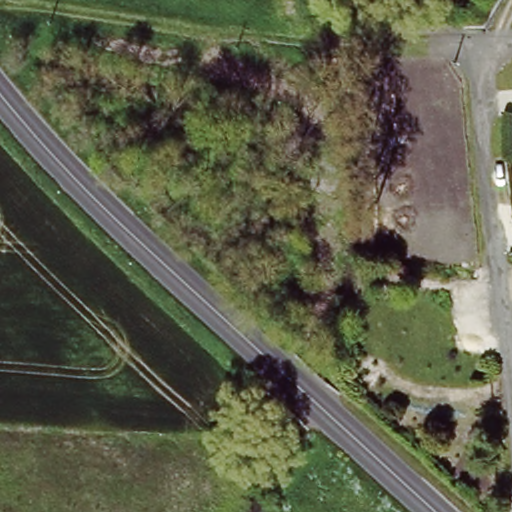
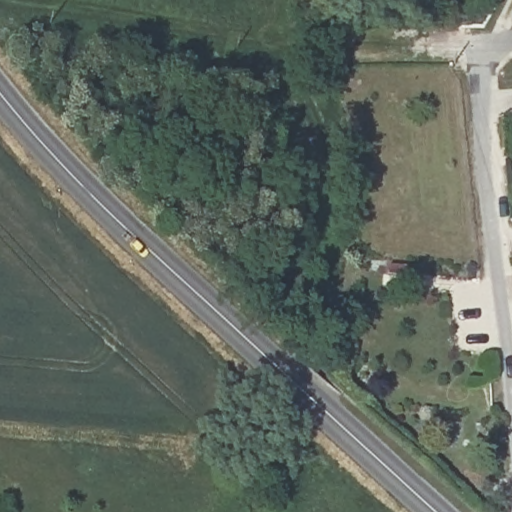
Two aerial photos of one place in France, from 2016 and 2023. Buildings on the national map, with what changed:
[]

